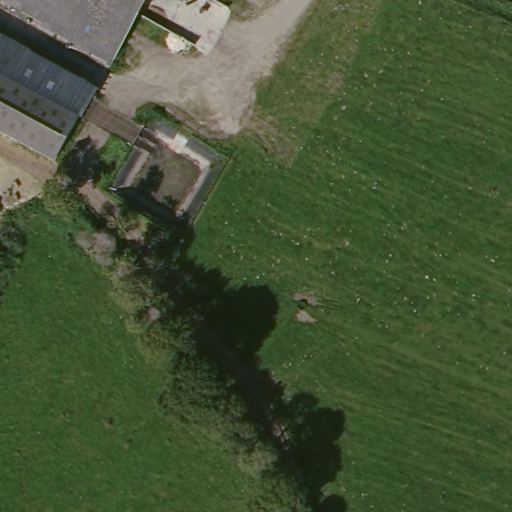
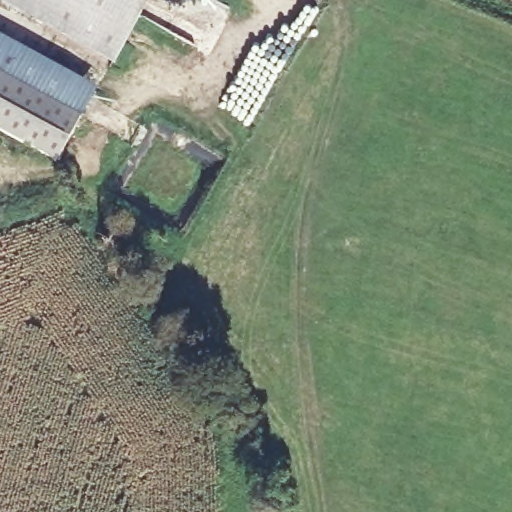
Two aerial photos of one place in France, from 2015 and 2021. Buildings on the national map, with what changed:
unchanged [(0,0),(148,0),(112,64),(0,0)]
unchanged [(101,89),(82,123),(77,121),(56,162),(0,133),(0,34),(101,89)]

